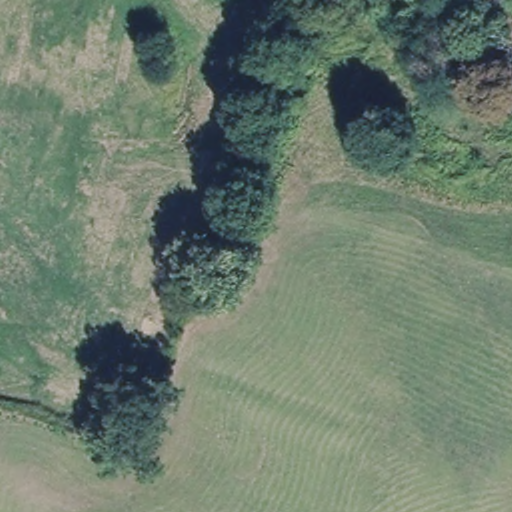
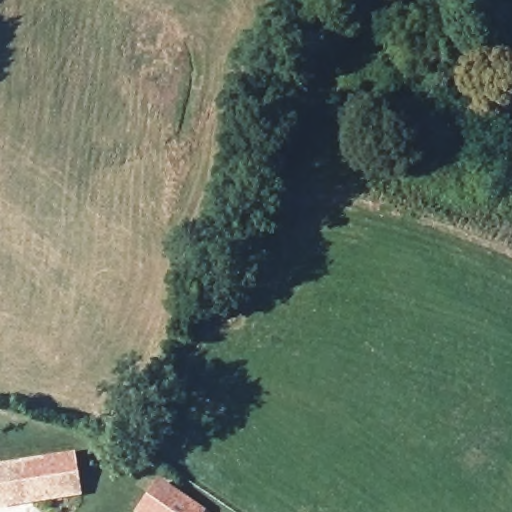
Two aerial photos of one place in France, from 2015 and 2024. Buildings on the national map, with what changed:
new [(0,507),(0,462),(75,450),(81,495),(0,507)]
new [(158,478),(207,510),(210,512),(134,512),(158,478)]

